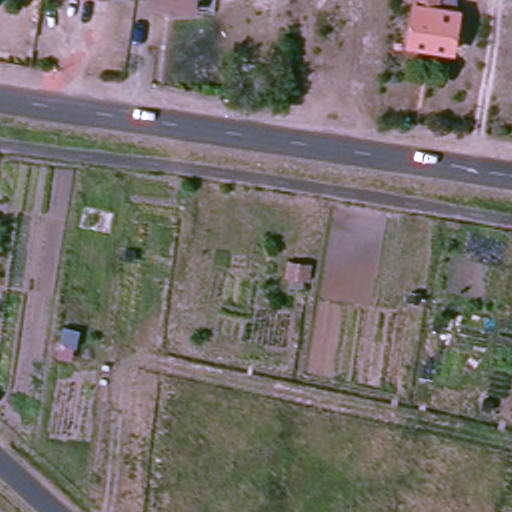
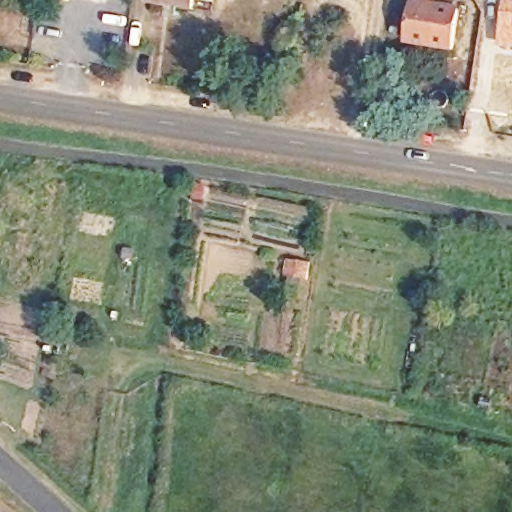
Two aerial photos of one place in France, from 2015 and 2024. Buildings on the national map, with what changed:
unchanged [(195,0),(194,11),(151,5),(151,0),(195,0)]
unchanged [(418,0),(440,0),(439,12),(441,12),(443,1),(456,2),(454,14),(459,15),(453,55),(411,48),(418,0)]
new [(508,0),(512,1),(512,50),(499,48),(504,0),(508,0)]

